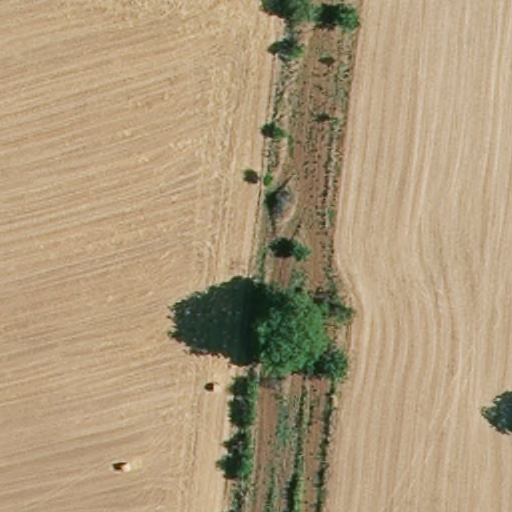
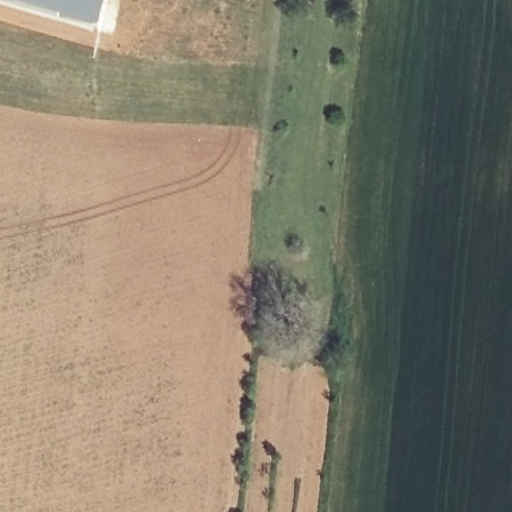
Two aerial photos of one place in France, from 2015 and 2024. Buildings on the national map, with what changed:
new [(17,0),(102,0),(95,24),(17,0)]

